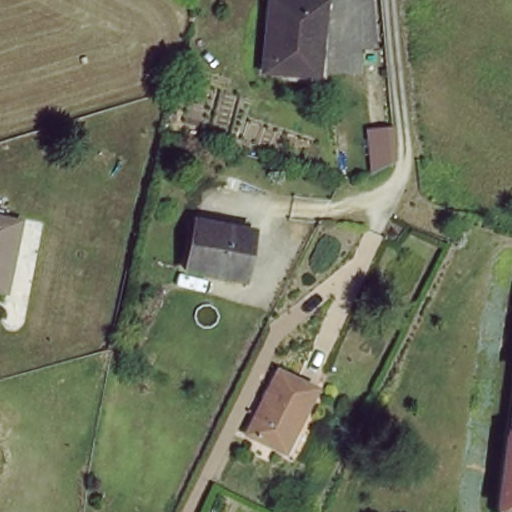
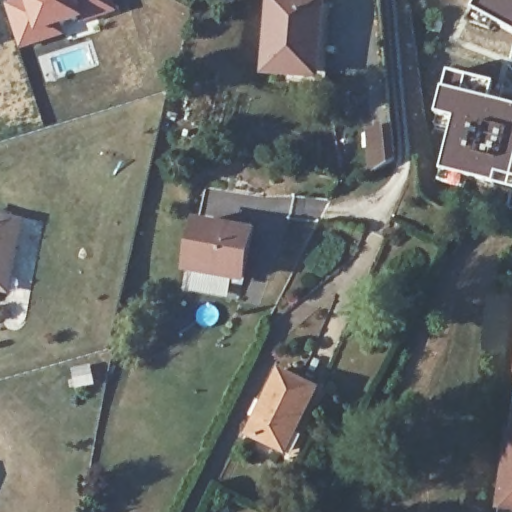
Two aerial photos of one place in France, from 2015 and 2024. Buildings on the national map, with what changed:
new [(85,0),(90,18),(63,28),(66,36),(21,51),(5,4),(16,0),(85,0)]
new [(95,20),(86,0),(118,0),(121,11),(95,20)]
unchanged [(317,27),(313,70),(291,69),(291,76),(263,74),(269,0),(275,0),(324,4),(322,27),(317,27)]
new [(478,2),(474,0),(512,0),(512,31),(474,10),(478,2)]
new [(512,109),(512,179),(498,175),(496,185),(443,168),(456,119),(438,114),(445,90),(449,73),(495,85),(491,104),(512,109)]
new [(395,126),(397,160),(370,174),(365,129),(395,126)]
unchanged [(0,290),(0,214),(22,219),(15,252),(5,291),(0,290)]
unchanged [(240,282),(186,273),(195,220),(249,230),(240,282)]
unchanged [(245,431),(276,367),(316,387),(283,451),(245,431)]
unchanged [(512,435),(512,512),(502,511),(512,435)]

